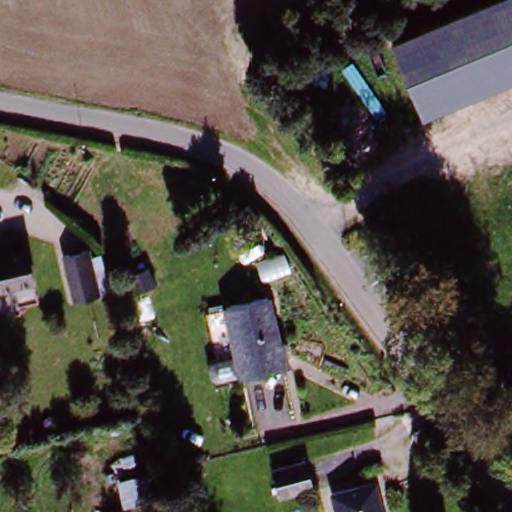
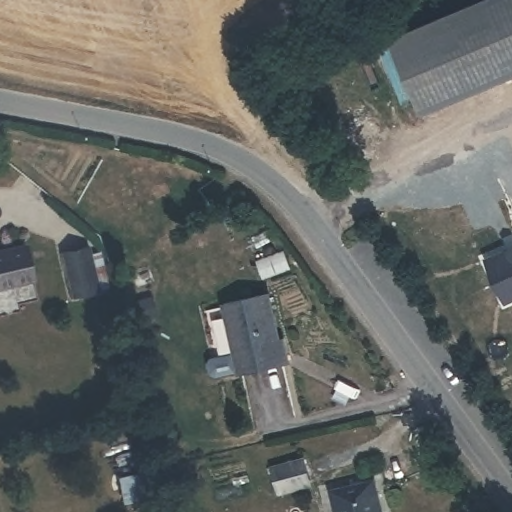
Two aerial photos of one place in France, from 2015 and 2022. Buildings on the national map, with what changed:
unchanged [(390,39),(482,0),(512,0),(512,72),(420,111),(390,39)]
unchanged [(122,181),(136,199),(102,228),(86,210),(122,181)]
unchanged [(24,244),(34,276),(0,285),(0,250),(24,244)]
new [(512,302),(504,305),(485,259),(512,246),(512,302)]
unchanged [(64,254),(85,247),(99,285),(76,293),(64,254)]
unchanged [(222,305),(265,291),(289,361),(245,377),(222,305)]
unchanged [(298,463),(307,488),(278,497),(270,471),(298,463)]
unchanged [(373,480),(384,512),(337,512),(331,493),(373,480)]

